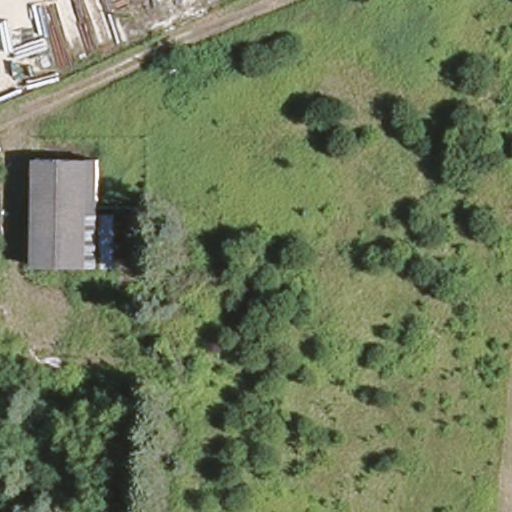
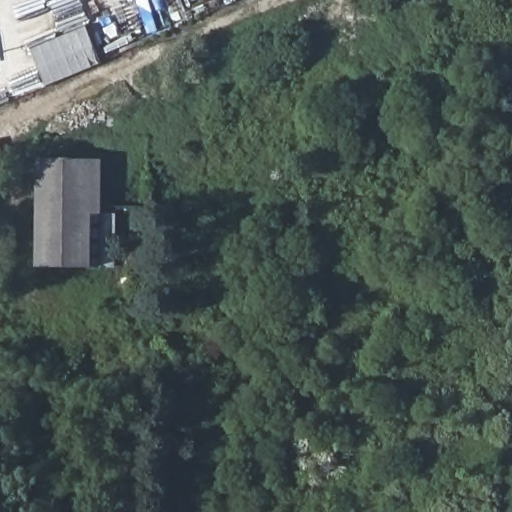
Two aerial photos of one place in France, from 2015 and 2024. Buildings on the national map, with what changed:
new [(87,26),(103,63),(49,86),(34,49),(87,26)]
unchanged [(98,155),(100,266),(35,267),(34,157),(98,155)]

